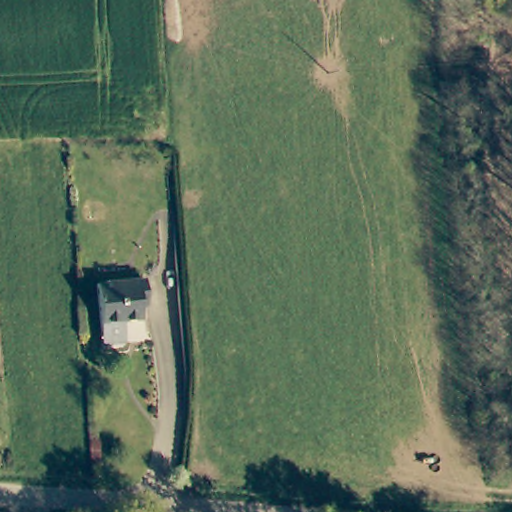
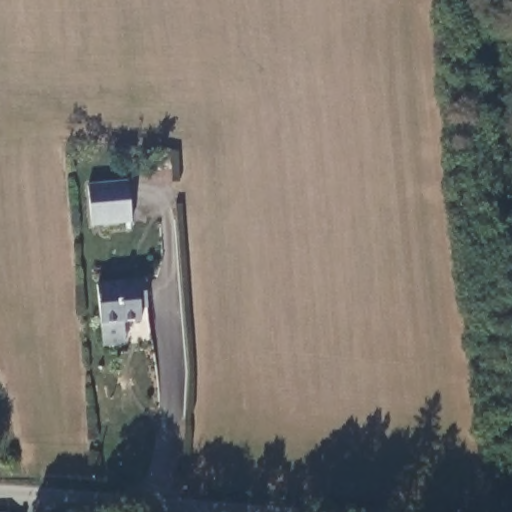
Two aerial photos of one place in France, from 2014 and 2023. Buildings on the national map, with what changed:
new [(129,181),(133,222),(92,226),(87,184),(129,181)]
unchanged [(142,324),(127,324),(127,331),(103,332),(100,287),(147,282),(149,302),(142,309),(142,324)]

